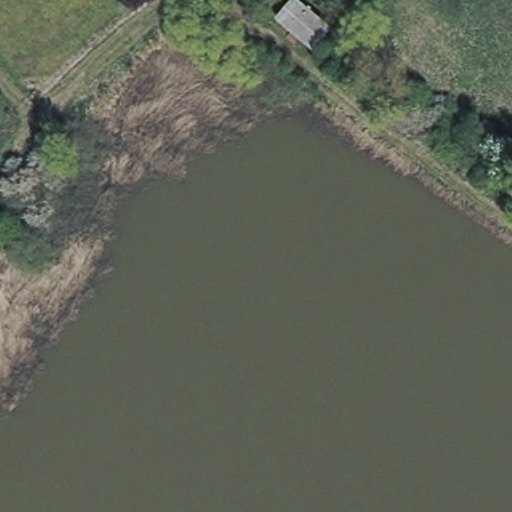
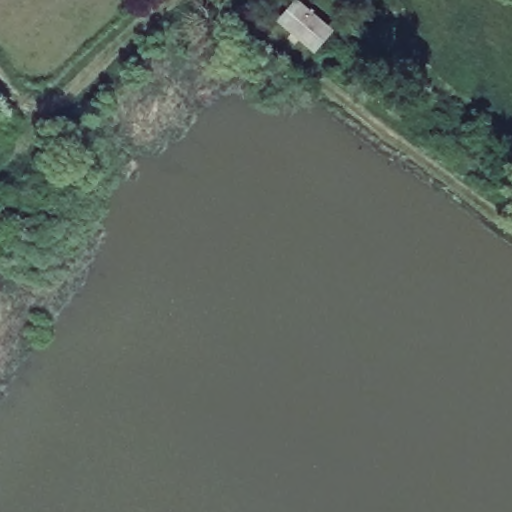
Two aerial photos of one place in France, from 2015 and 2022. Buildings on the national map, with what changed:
unchanged [(270,21),(291,0),(299,0),(337,29),(315,54),(270,21)]

